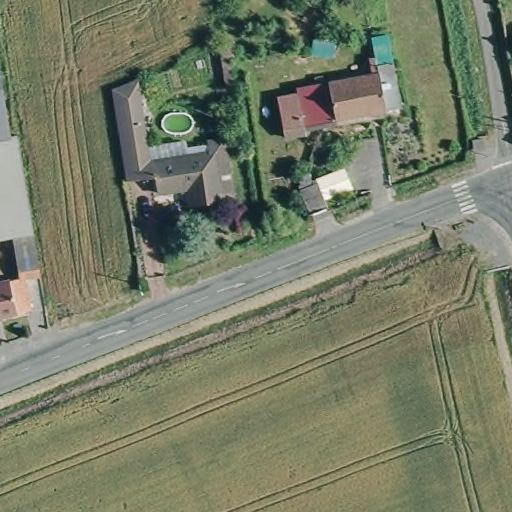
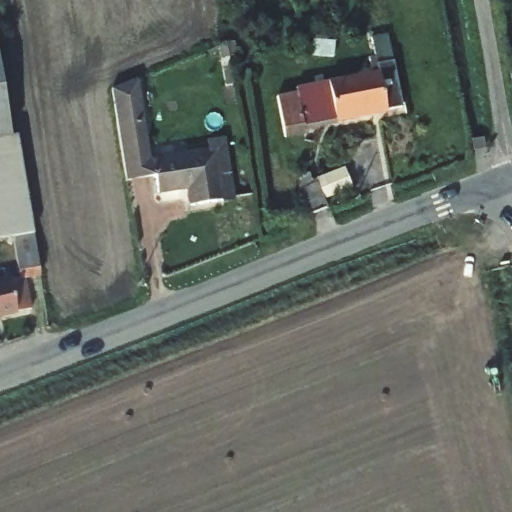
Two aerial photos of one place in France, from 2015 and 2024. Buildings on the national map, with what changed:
unchanged [(401,108),(305,129),(306,136),(283,139),(277,100),(297,96),(297,90),(377,73),(372,39),(387,36),(396,79),(401,108)]
unchanged [(0,140),(0,68),(11,138),(0,140)]
unchanged [(120,124),(140,122),(146,167),(126,170),(120,124)]
unchanged [(0,140),(11,138),(11,141),(14,161),(0,163),(0,140)]
unchanged [(220,196),(222,201),(192,206),(189,188),(157,192),(155,159),(215,151),(214,138),(226,139),(229,173),(232,195),(220,196)]
unchanged [(0,239),(0,163),(14,161),(25,235),(9,238),(0,239)]
unchanged [(313,216),(300,188),(318,181),(330,210),(313,216)]
unchanged [(29,311),(0,317),(0,285),(17,281),(9,238),(25,235),(32,276),(22,279),(29,311)]

